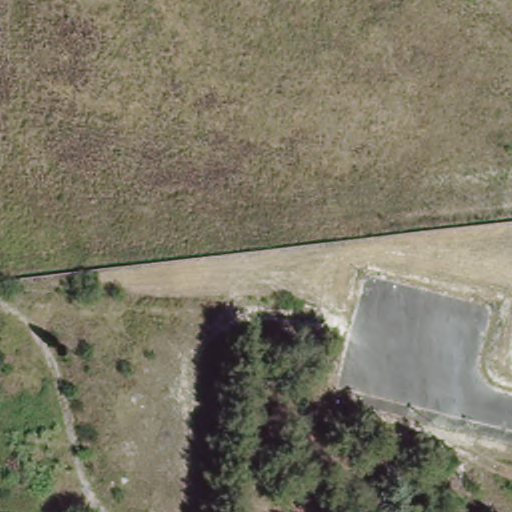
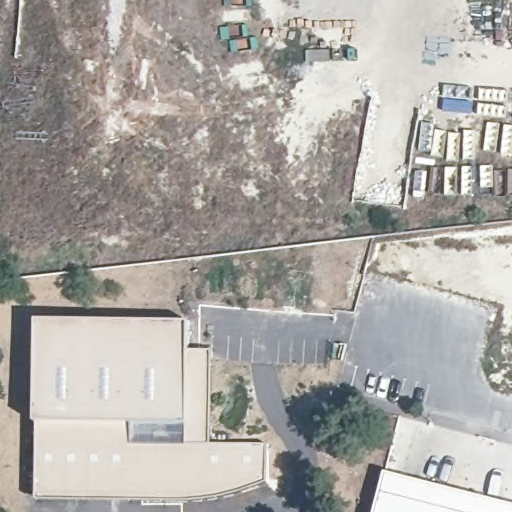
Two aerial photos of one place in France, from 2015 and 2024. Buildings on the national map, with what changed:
new [(190,322),(189,351),(212,352),(211,443),(267,444),(267,483),(234,495),(212,501),(196,503),(37,500),(37,423),(36,321),(190,322)]
new [(512,505),(512,512),(374,512),(385,472),(512,505)]

